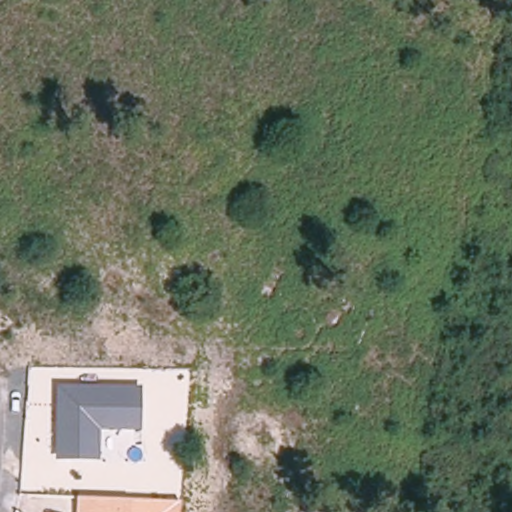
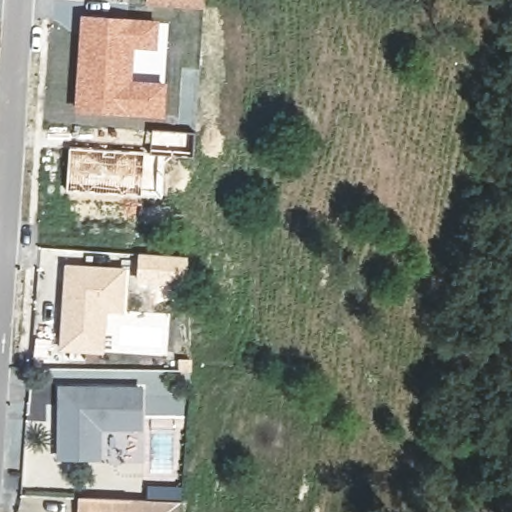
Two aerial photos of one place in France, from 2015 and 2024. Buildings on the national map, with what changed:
new [(204,9),(146,5),(146,0),(204,0),(204,9)]
new [(157,50),(134,48),(132,80),(165,82),(163,118),(74,112),(81,14),(160,18),(157,50)]
new [(141,197),(66,191),(70,147),(144,151),(141,197)]
new [(187,256),(186,286),(137,283),(139,253),(187,256)]
new [(107,312),(104,354),(59,351),(65,263),(126,267),(123,313),(107,312)]
unchanged [(140,430),(101,430),(100,459),(57,459),(58,384),(141,385),(140,430)]
unchanged [(76,512),(77,497),(179,501),(177,512),(76,512)]

